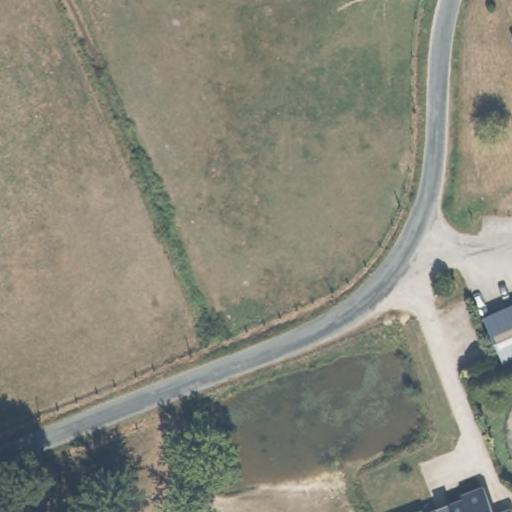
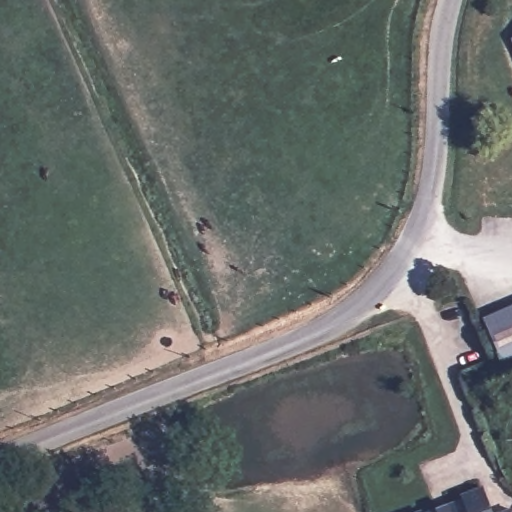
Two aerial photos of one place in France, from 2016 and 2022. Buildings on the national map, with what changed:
unchanged [(512,367),(508,368),(486,319),(512,308),(512,367)]
unchanged [(462,501),(461,496),(483,487),(492,512),(431,512),(462,501)]
unchanged [(422,512),(419,512),(422,511),(422,512)]
unchanged [(511,511),(512,512),(507,512),(511,511)]

